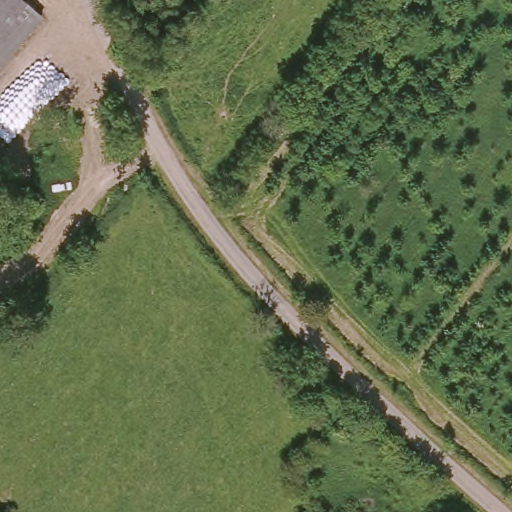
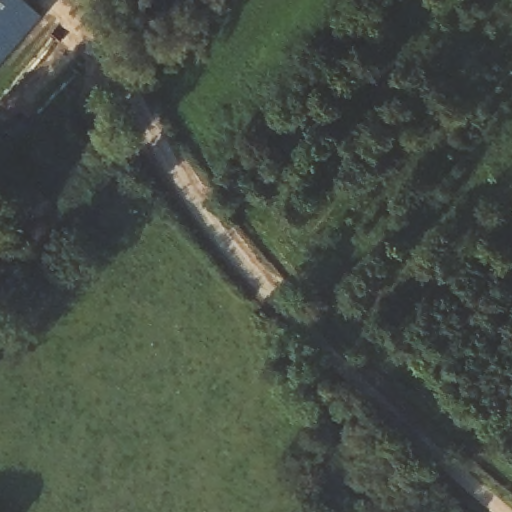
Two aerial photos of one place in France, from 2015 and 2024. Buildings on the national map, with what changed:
unchanged [(0,66),(0,0),(16,0),(40,23),(0,66)]

